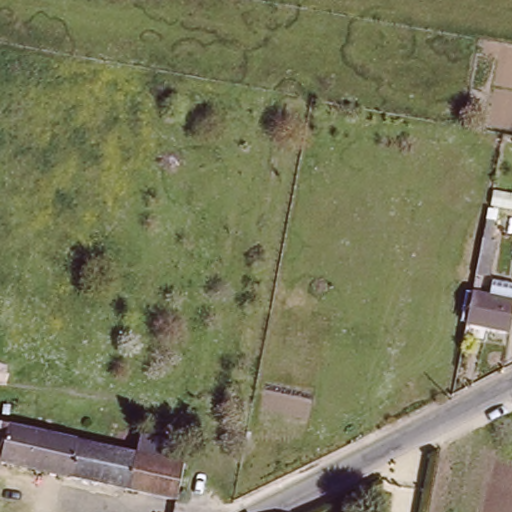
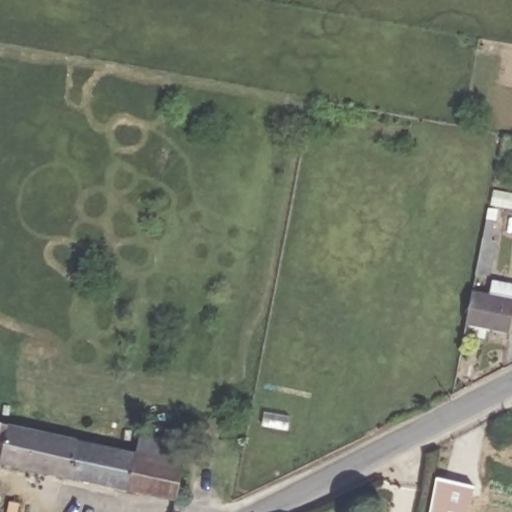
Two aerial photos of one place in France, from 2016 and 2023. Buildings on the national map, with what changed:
unchanged [(470,323),(476,290),(512,299),(512,326),(511,330),(470,323)]
unchanged [(136,454),(141,432),(187,442),(178,498),(3,457),(0,456),(0,421),(136,454)]
unchanged [(3,457),(0,471),(0,456),(3,457)]
new [(475,484),(470,512),(431,512),(438,476),(475,484)]

